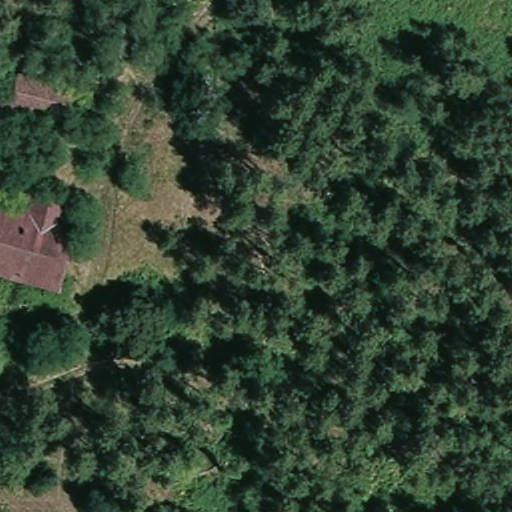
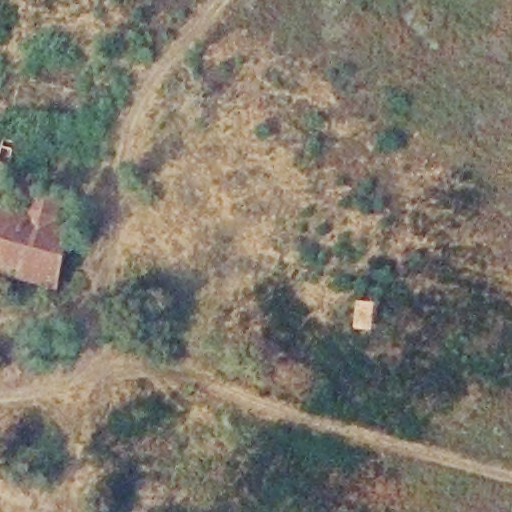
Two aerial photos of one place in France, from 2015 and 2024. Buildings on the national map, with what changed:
unchanged [(14,112),(10,133),(0,130),(0,96),(14,99),(21,65),(117,92),(106,135),(14,112)]
unchanged [(79,278),(74,292),(0,270),(0,229),(7,204),(46,214),(51,199),(86,207),(84,227),(100,230),(89,282),(79,278)]

